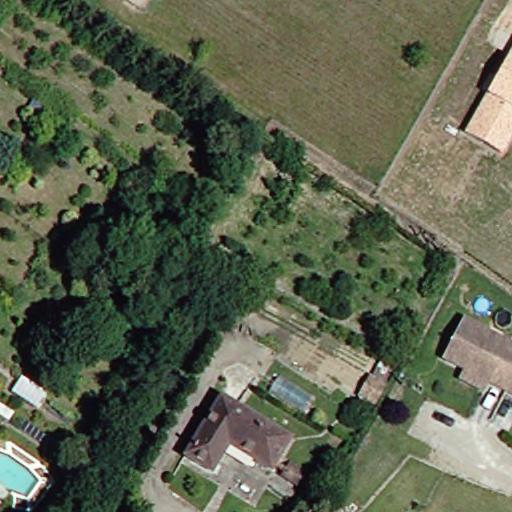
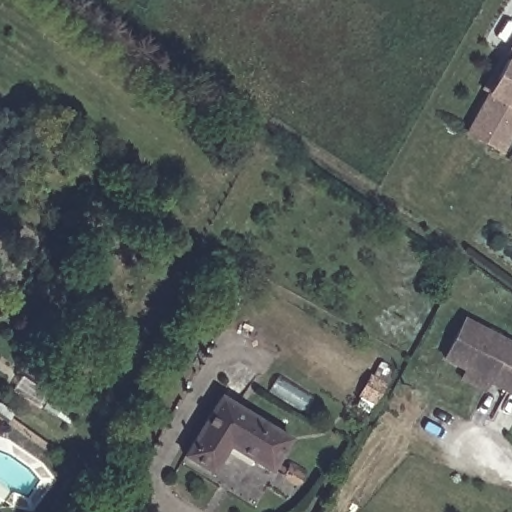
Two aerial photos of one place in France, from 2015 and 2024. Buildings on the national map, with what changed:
unchanged [(502,155),(464,134),(487,95),(508,56),(512,49),(512,136),(502,155)]
unchanged [(512,345),(512,394),(434,353),(454,315),(512,345)]
unchanged [(372,403),(360,396),(371,378),(383,385),(372,403)]
unchanged [(217,443),(201,470),(172,451),(210,390),(281,435),(260,468),(217,443)]
unchanged [(302,471),(295,485),(283,477),(291,465),(302,471)]

